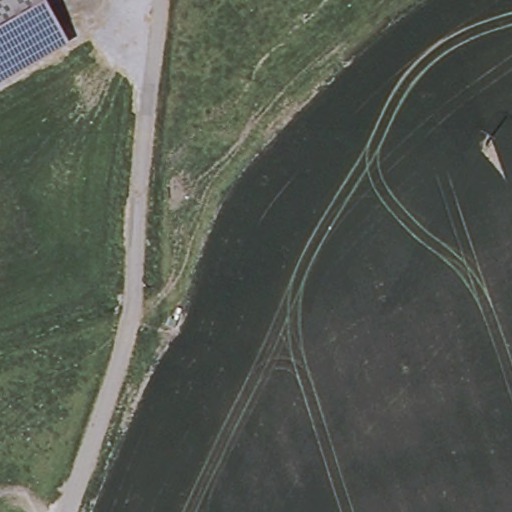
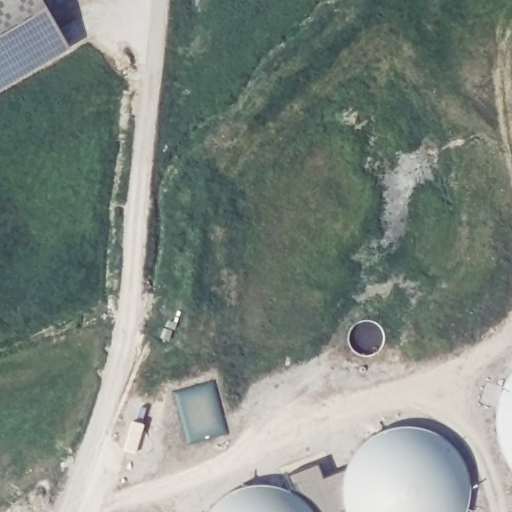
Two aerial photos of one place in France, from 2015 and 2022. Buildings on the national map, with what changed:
unchanged [(40,0),(63,39),(0,75),(0,0),(40,0)]
unchanged [(178,318),(176,322),(174,321),(176,317),(178,318)]
unchanged [(176,323),(174,329),(168,327),(169,320),(176,323)]
new [(472,506),(470,512),(343,512),(341,506),(339,493),(341,480),(344,468),(351,456),(359,446),(369,438),(381,431),(394,428),(407,426),(419,428),(432,431),(444,438),(454,446),(462,456),(469,468),(472,480),(474,493),(472,506)]
new [(217,507),(226,499),(238,494),(249,489),(261,489),(274,489),(286,494),(296,499),(306,507),(310,512),(213,512),(217,507)]

